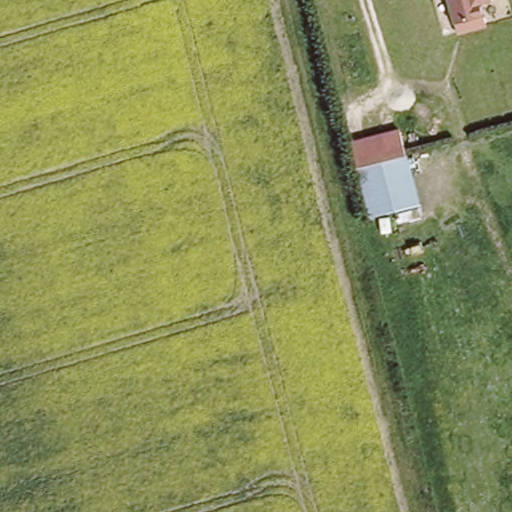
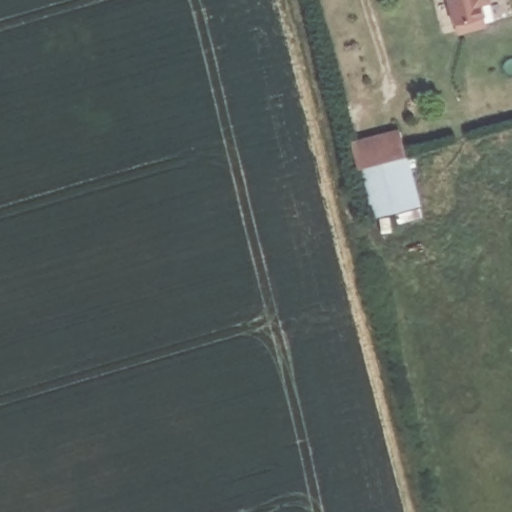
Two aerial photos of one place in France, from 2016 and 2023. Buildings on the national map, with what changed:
unchanged [(490,2),(479,5),(481,15),(454,22),(448,0),(489,0),(490,2)]
unchanged [(350,140),(397,127),(406,159),(360,173),(350,140)]
unchanged [(406,159),(420,207),(372,220),(360,173),(406,159)]

